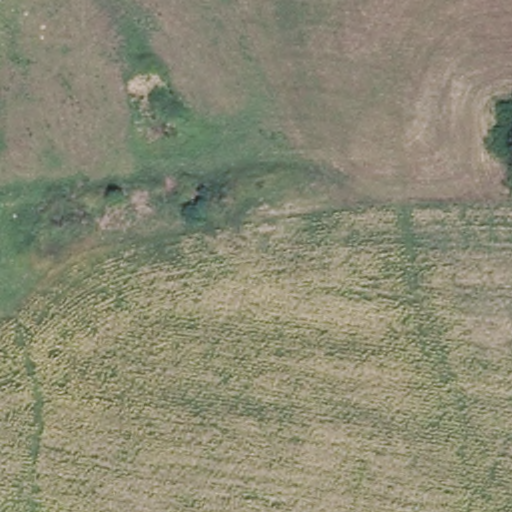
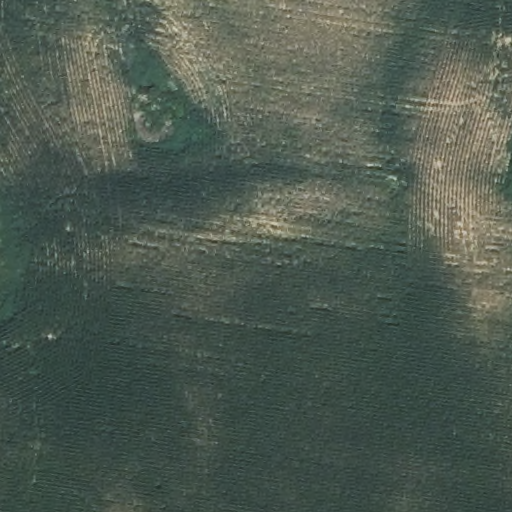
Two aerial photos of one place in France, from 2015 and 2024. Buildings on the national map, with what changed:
[]

